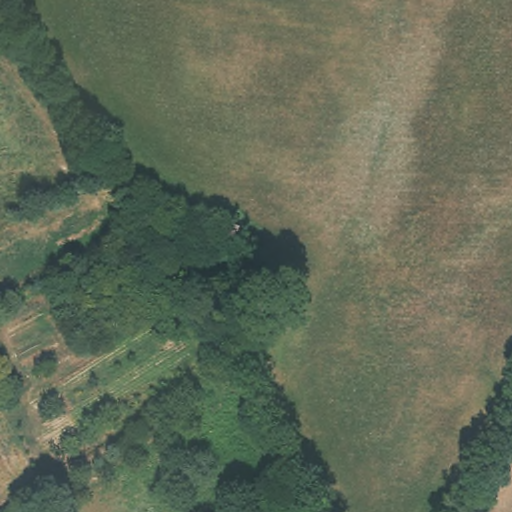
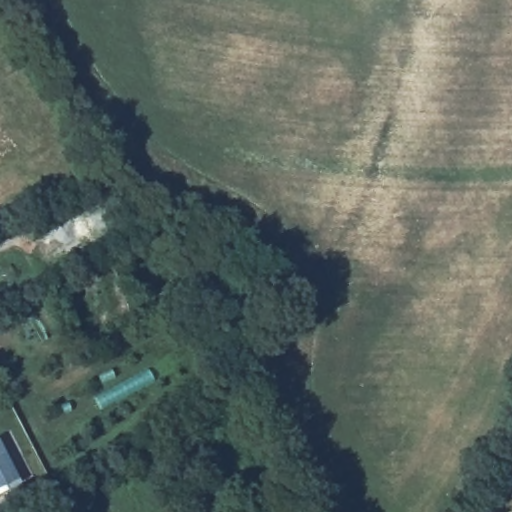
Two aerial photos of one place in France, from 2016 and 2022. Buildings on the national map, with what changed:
new [(0,494),(0,440),(21,482),(0,494)]

